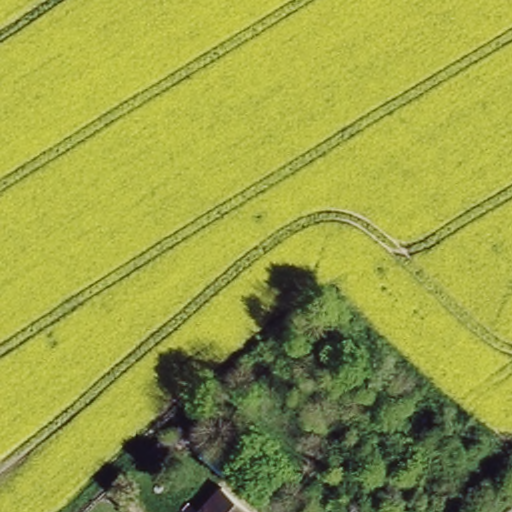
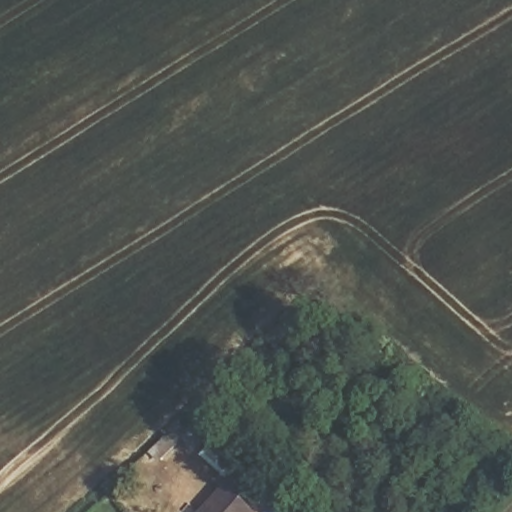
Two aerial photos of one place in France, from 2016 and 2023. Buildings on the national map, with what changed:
unchanged [(215,486),(243,512),(192,512),(215,486)]

